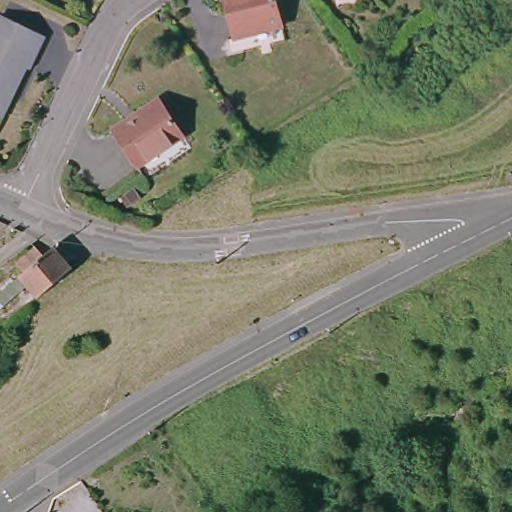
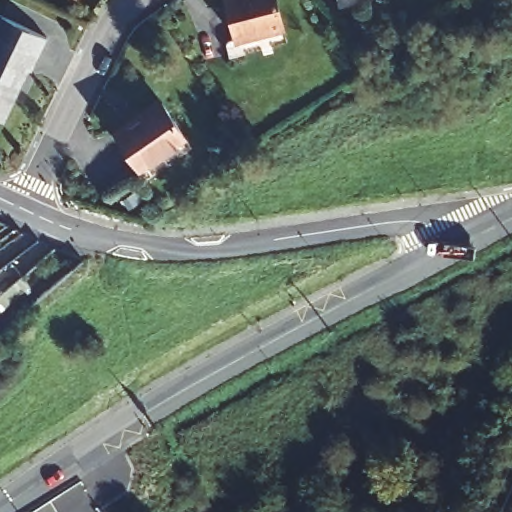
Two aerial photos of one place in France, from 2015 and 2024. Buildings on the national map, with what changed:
unchanged [(230,34),(221,0),(272,0),(277,22),(230,34)]
unchanged [(22,72),(15,70),(5,94),(1,92),(0,94),(0,22),(37,39),(22,72)]
unchanged [(183,130),(138,163),(112,128),(159,95),(183,130)]
unchanged [(0,109),(0,99),(3,101),(0,109)]
unchanged [(53,245),(70,266),(35,294),(25,282),(3,299),(0,296),(0,287),(47,250),(53,245)]

